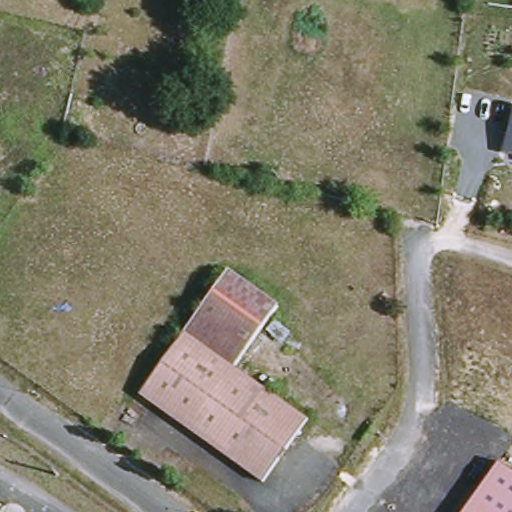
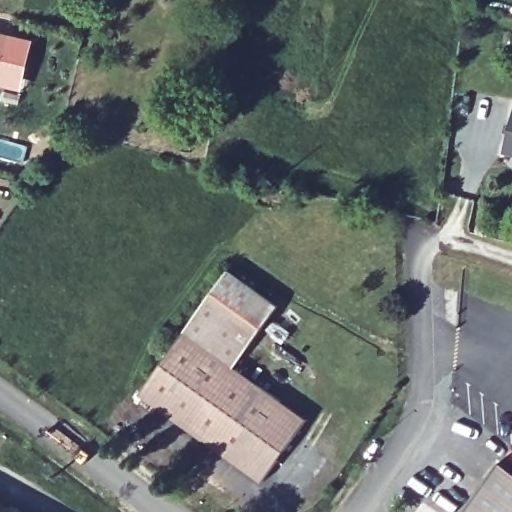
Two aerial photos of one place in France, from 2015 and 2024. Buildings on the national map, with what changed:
new [(0,85),(0,32),(35,39),(24,90),(0,85)]
unchanged [(507,156),(512,131),(512,158),(507,156)]
unchanged [(269,323),(221,289),(236,269),(283,305),(269,323)]
unchanged [(239,365),(312,418),(265,478),(143,390),(221,289),(269,323),(239,365)]
unchanged [(512,472),(512,512),(465,512),(500,463),(512,472)]
unchanged [(12,512),(0,512),(0,506),(11,512),(12,512)]

